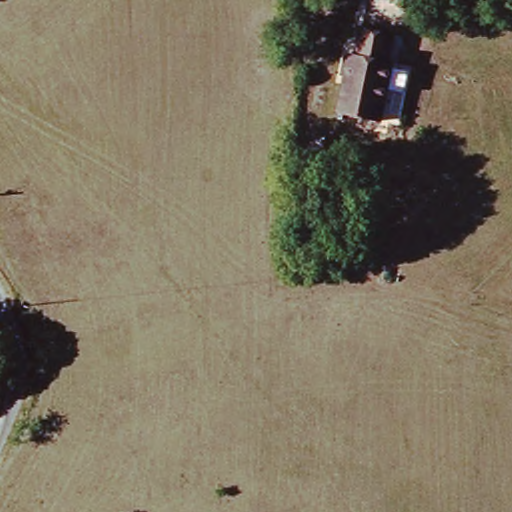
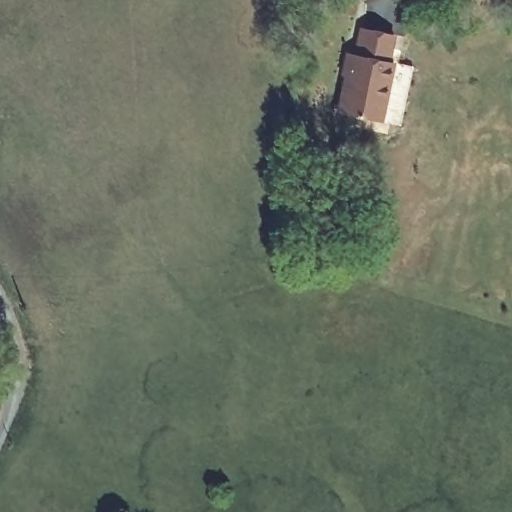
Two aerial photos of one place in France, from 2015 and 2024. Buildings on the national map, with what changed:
unchanged [(334,110),(345,50),(350,51),(356,24),(388,31),(383,57),(388,58),(376,118),(334,110)]
unchanged [(407,62),(394,122),(376,118),(388,58),(407,62)]

